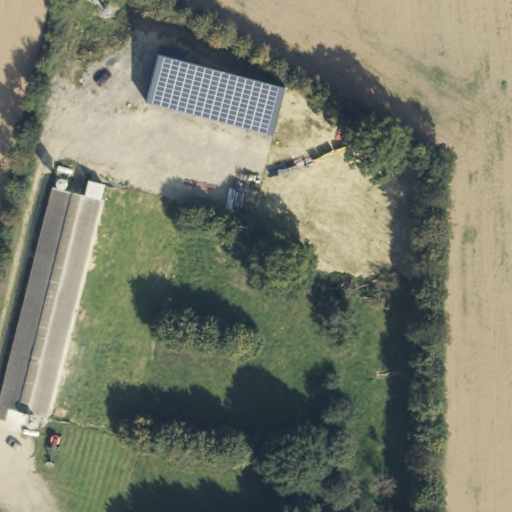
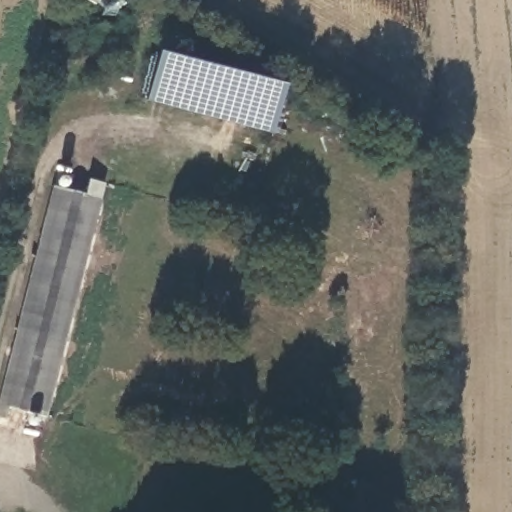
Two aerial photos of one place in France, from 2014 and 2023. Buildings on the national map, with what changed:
unchanged [(149,102),(163,54),(289,86),(273,134),(149,102)]
unchanged [(54,189),(102,201),(47,422),(12,413),(9,424),(0,422),(0,405),(54,189)]

